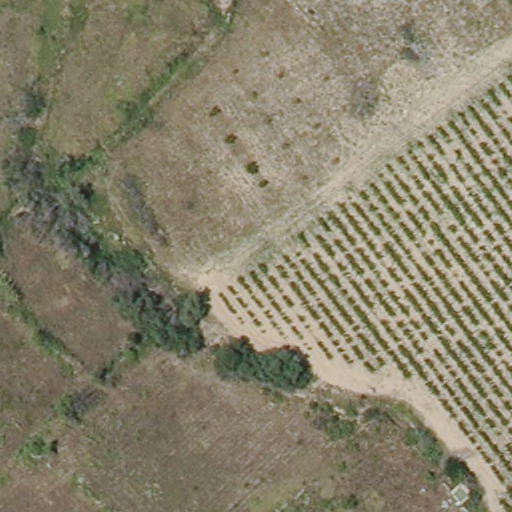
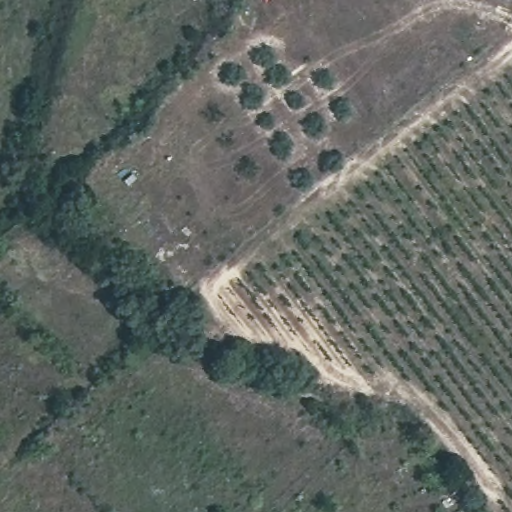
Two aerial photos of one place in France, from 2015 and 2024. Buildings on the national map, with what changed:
unchanged [(443,492),(457,477),(465,486),(469,491),(455,504),(443,492)]

